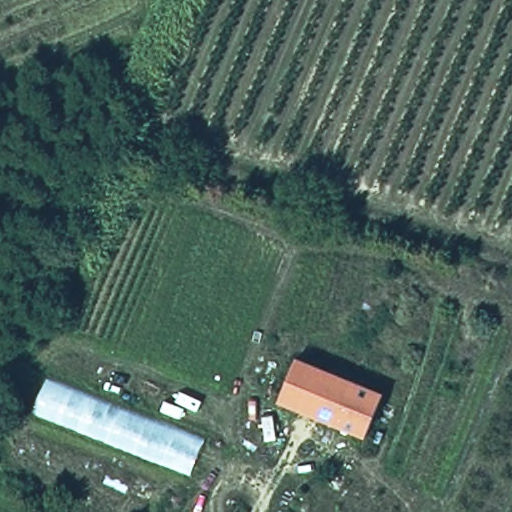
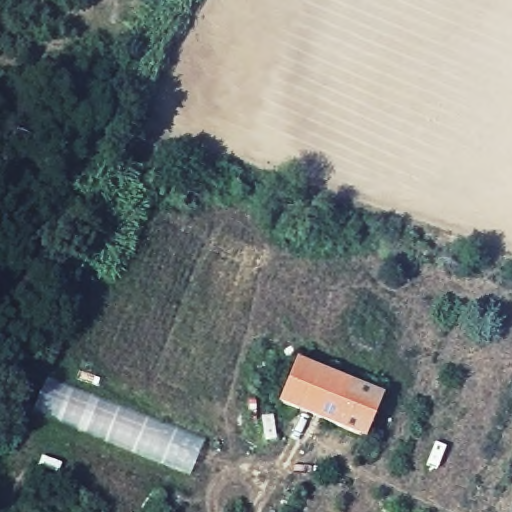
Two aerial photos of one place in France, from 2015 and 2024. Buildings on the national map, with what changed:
unchanged [(382,395),(365,437),(278,401),(295,359),(382,395)]
unchanged [(188,478),(31,416),(47,381),(201,443),(188,478)]

